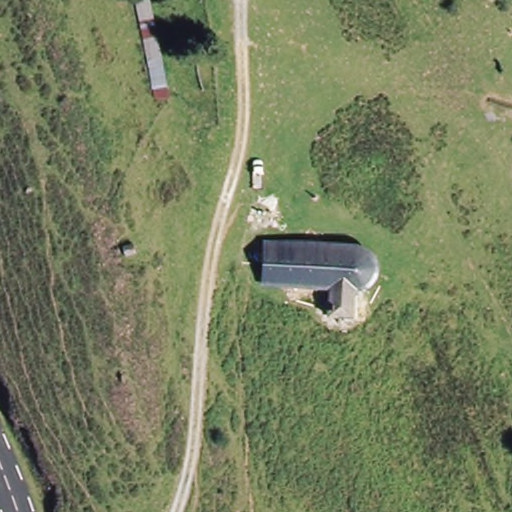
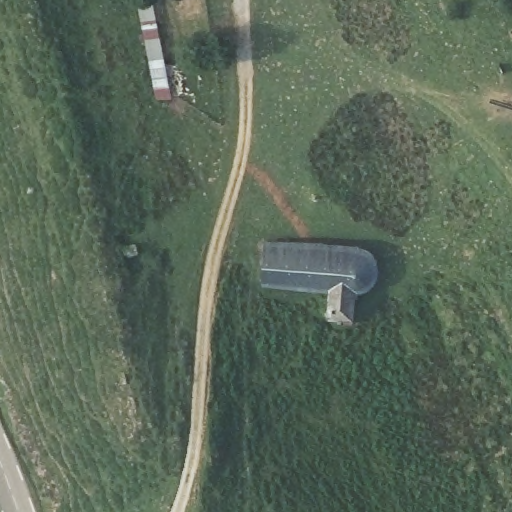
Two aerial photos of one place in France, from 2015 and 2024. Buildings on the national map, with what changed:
unchanged [(162,24),(170,65),(144,72),(134,29),(162,24)]
unchanged [(260,236),(344,245),(368,247),(379,251),(386,260),(387,271),(381,281),(371,286),(362,285),(360,299),(350,297),(349,312),(324,311),(323,287),(257,281),(260,236)]

